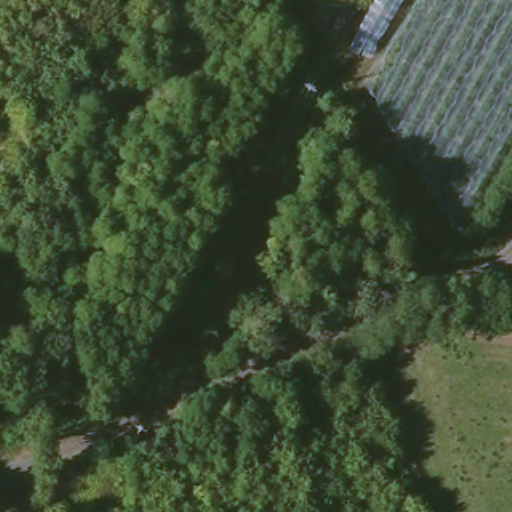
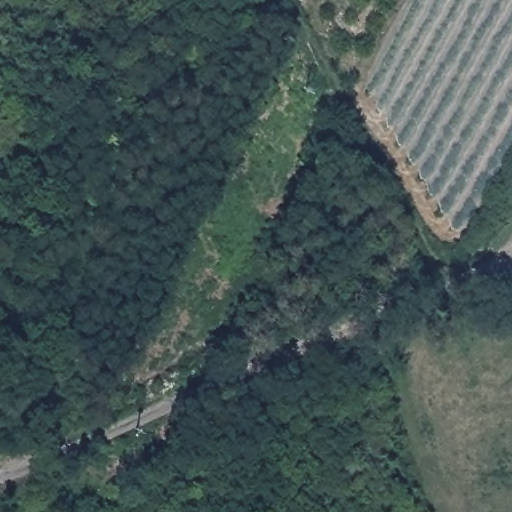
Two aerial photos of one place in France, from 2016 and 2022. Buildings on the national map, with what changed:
unchanged [(451,313),(435,314),(434,303),(450,302),(451,313)]

